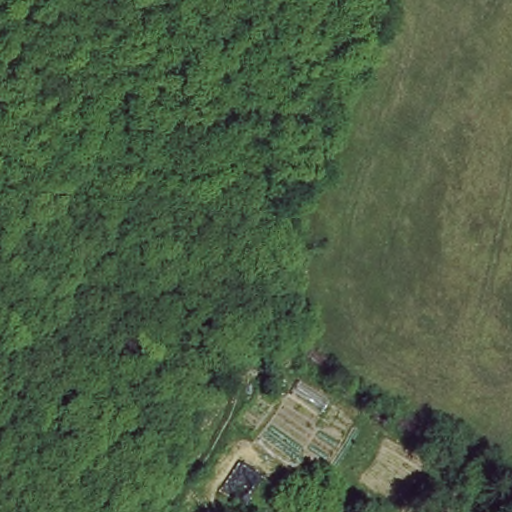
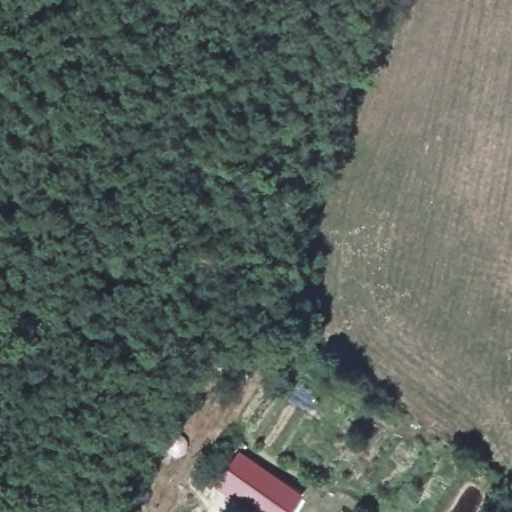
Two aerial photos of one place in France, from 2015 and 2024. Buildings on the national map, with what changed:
demolished [(302,512),(297,512),(218,478),(234,443),(318,477),(302,512)]
new [(303,500),(294,512),(245,512),(212,490),(239,453),(303,500)]

